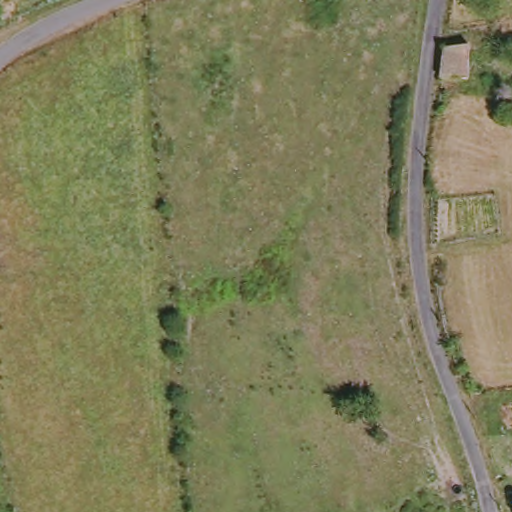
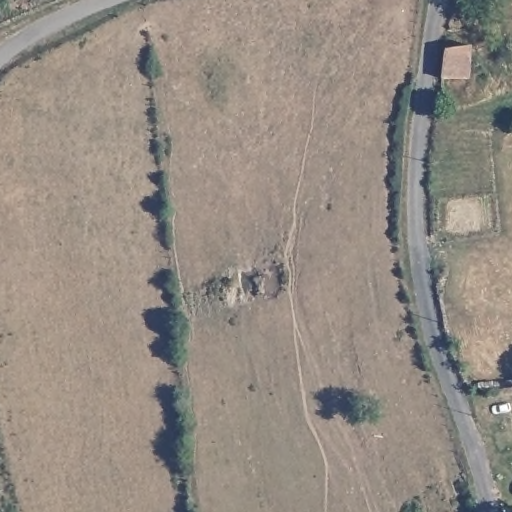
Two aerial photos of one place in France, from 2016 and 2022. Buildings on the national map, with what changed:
unchanged [(469,50),(469,80),(444,82),(449,51),(469,50)]

